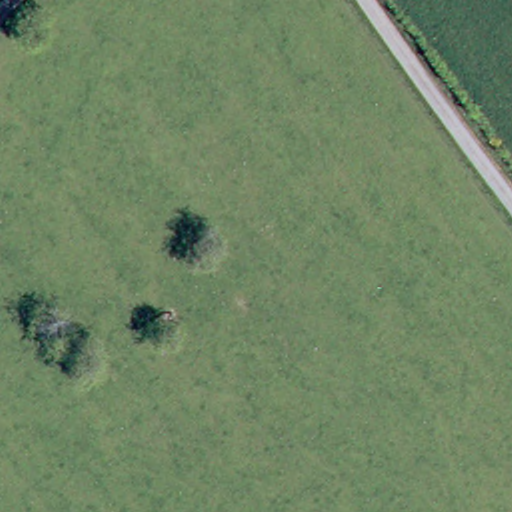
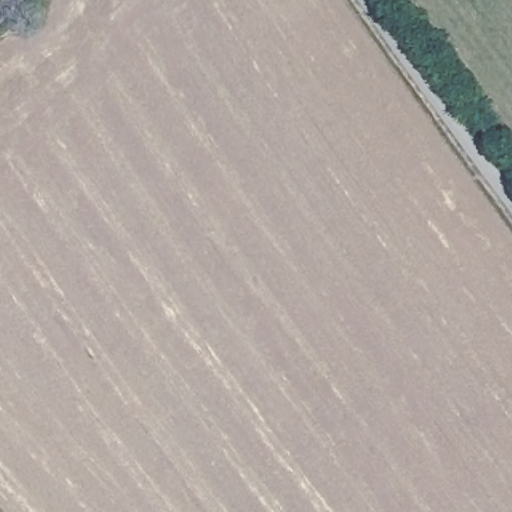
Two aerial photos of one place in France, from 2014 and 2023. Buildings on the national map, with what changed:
[]

